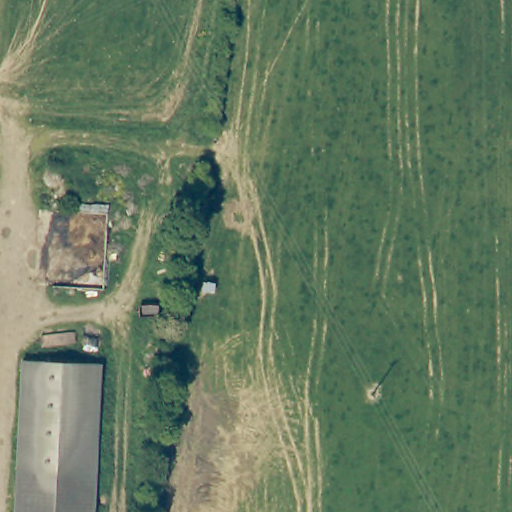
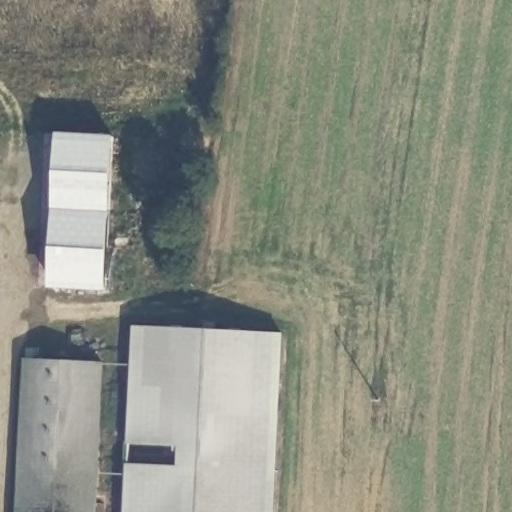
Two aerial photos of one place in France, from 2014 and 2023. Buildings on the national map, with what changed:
new [(177,467),(177,447),(126,445),(132,325),(282,332),(274,512),(122,512),(125,464),(177,467)]
unchanged [(96,472),(94,512),(18,512),(26,358),(102,361),(96,472)]

